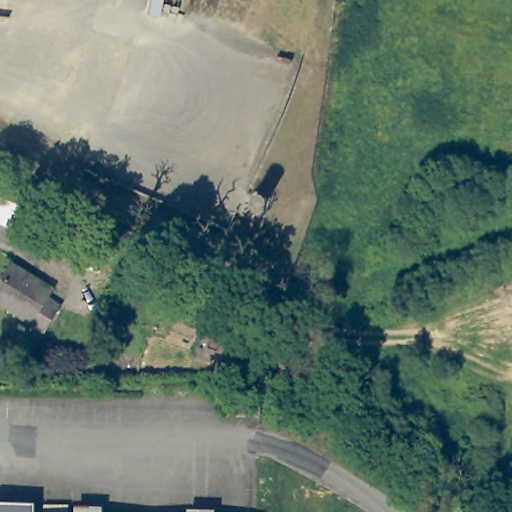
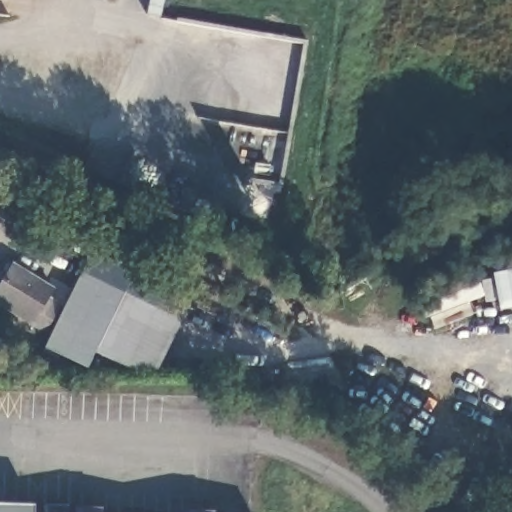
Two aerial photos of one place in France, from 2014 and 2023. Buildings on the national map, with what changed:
unchanged [(46,224),(41,239),(11,227),(16,212),(46,224)]
unchanged [(50,288),(46,296),(59,303),(42,330),(0,303),(0,279),(10,263),(50,288)]
new [(81,273),(123,293),(180,321),(153,378),(94,352),(87,368),(45,347),(81,273)]
unchanged [(32,510),(33,512),(0,512),(0,508),(32,510)]

